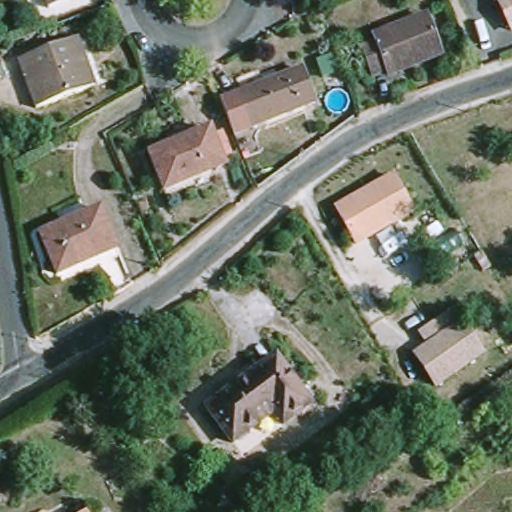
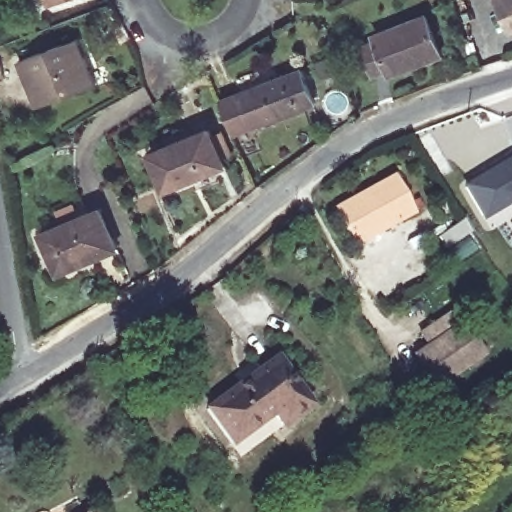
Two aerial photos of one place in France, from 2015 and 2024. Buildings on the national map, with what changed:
unchanged [(43,0),(74,0),(47,10),(43,0)]
unchanged [(512,0),(512,37),(493,0),(512,0)]
unchanged [(434,16),(449,57),(399,76),(397,71),(381,77),(369,47),(385,41),(383,36),(434,16)]
unchanged [(79,41),(96,86),(38,109),(21,63),(79,41)]
unchanged [(304,72),(316,107),(253,130),(240,95),(304,72)]
unchanged [(205,128),(221,168),(164,192),(147,152),(205,128)]
new [(512,200),(485,215),(468,184),(512,160),(512,200)]
unchanged [(357,244),(334,206),(395,172),(417,212),(357,244)]
new [(512,228),(507,220),(492,228),(485,215),(512,200),(512,228)]
unchanged [(98,212),(115,251),(56,278),(39,237),(98,212)]
unchanged [(413,353),(427,342),(419,331),(455,307),(488,354),(437,388),(413,353)]
unchanged [(279,361),(314,408),(286,430),(276,417),(235,446),(210,411),(279,361)]

